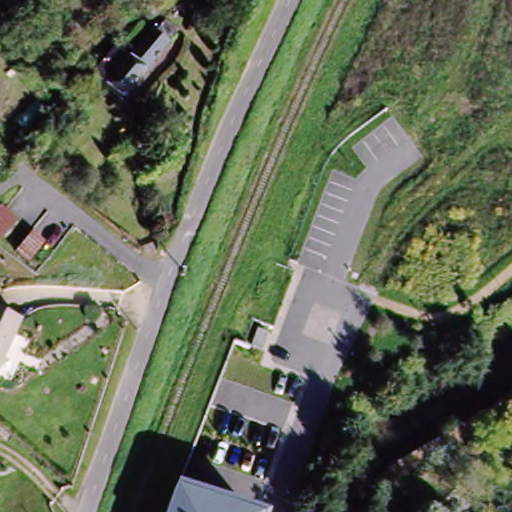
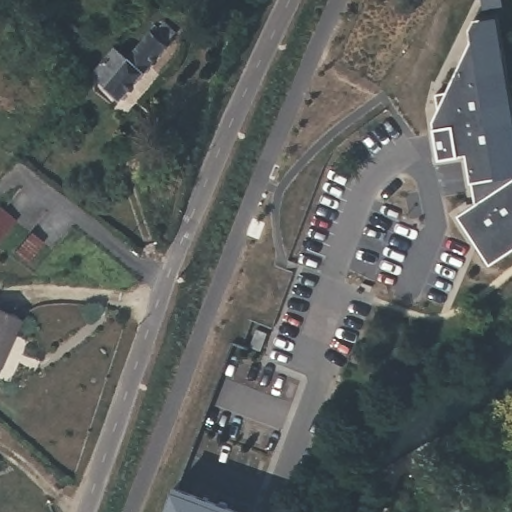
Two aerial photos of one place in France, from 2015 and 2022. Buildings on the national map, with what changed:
new [(512,89),(512,249),(490,264),(457,215),(477,202),(472,178),(467,151),(440,155),(435,127),(433,119),(484,17),(482,0),(500,0),(500,14),(512,89)]
unchanged [(121,113),(107,99),(107,98),(95,88),(117,63),(130,73),(152,46),(155,49),(164,37),(177,47),(121,113)]
unchanged [(0,228),(0,208),(10,216),(0,228)]
unchanged [(22,263),(10,253),(26,232),(40,243),(22,263)]
unchanged [(0,369),(0,315),(20,324),(0,369)]
unchanged [(177,481),(260,512),(166,512),(177,481)]

